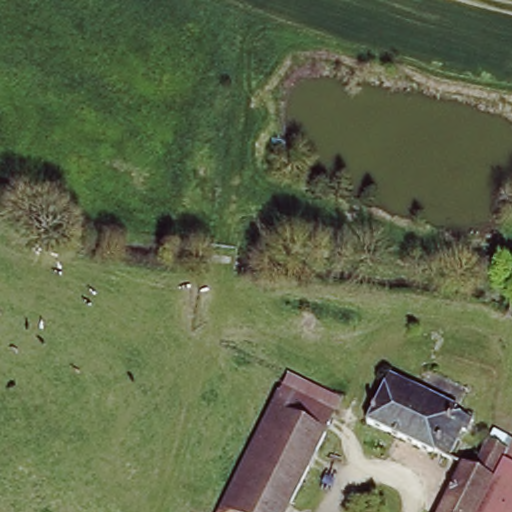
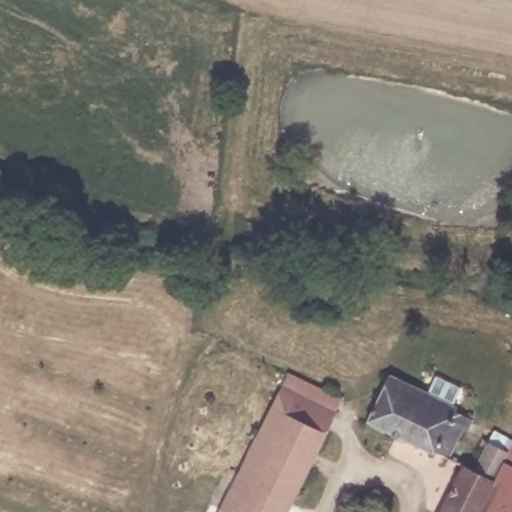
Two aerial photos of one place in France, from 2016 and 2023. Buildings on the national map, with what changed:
unchanged [(387,377),(457,413),(455,416),(468,422),(449,464),(364,422),(387,377)]
unchanged [(281,382),(335,410),(325,430),(271,402),(281,382)]
unchanged [(271,402),(325,430),(290,501),(236,473),(271,402)]
unchanged [(475,512),(504,457),(510,445),(512,446),(512,512),(475,512)]
unchanged [(469,476),(485,447),(504,457),(475,512),(436,512),(456,470),(469,476)]
unchanged [(290,501),(285,512),(233,512),(220,505),(236,473),(290,501)]
unchanged [(233,512),(216,512),(220,505),(233,512)]

